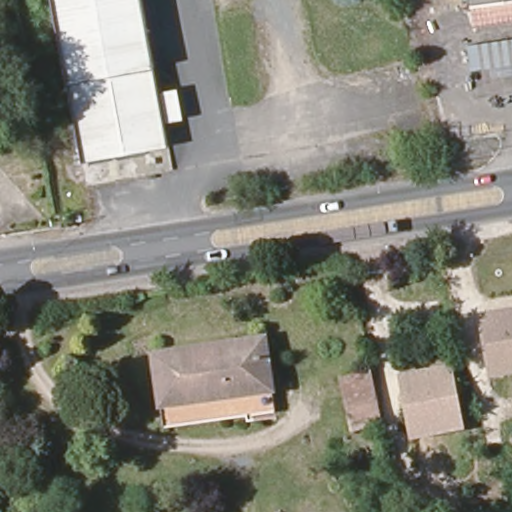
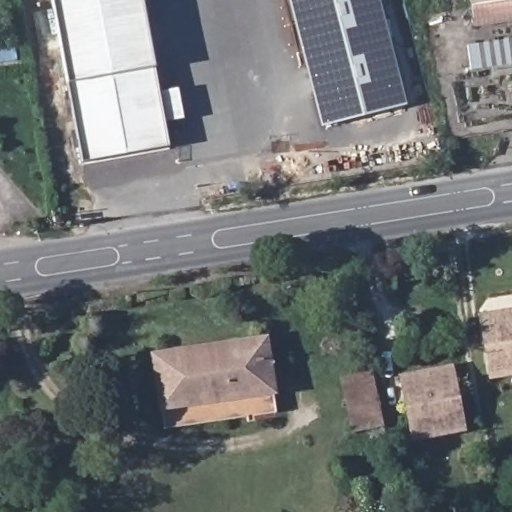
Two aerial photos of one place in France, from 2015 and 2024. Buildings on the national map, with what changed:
unchanged [(199,126),(176,132),(181,155),(95,177),(70,70),(53,0),(143,0),(169,103),(192,99),(199,126)]
new [(288,0),(379,0),(406,105),(320,127),(288,0)]
unchanged [(474,0),(512,0),(512,19),(477,23),(474,0)]
unchanged [(512,63),(472,68),(469,44),(512,38),(512,63)]
unchanged [(512,306),(512,375),(485,379),(475,312),(512,306)]
unchanged [(155,356),(266,337),(279,416),(169,425),(155,356)]
unchanged [(407,442),(395,374),(451,366),(464,433),(407,442)]
unchanged [(379,371),(386,426),(355,432),(344,376),(379,371)]

